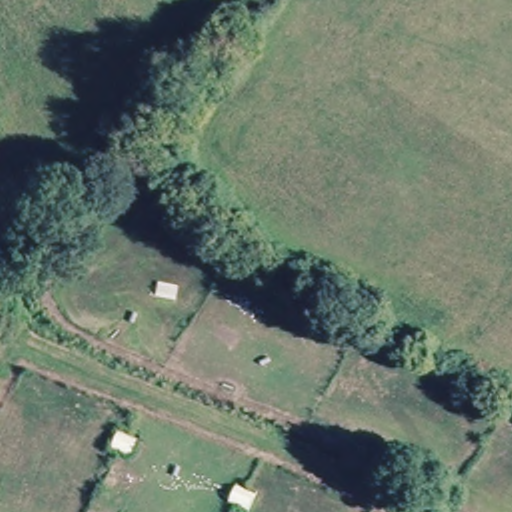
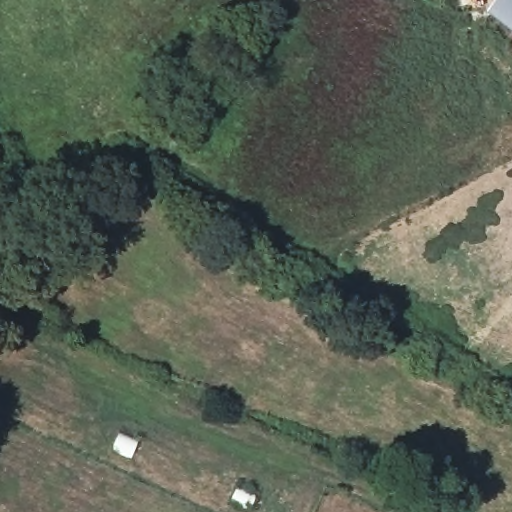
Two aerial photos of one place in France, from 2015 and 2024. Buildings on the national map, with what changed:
new [(481,7),(488,0),(512,0),(512,34),(496,21),(481,7)]

